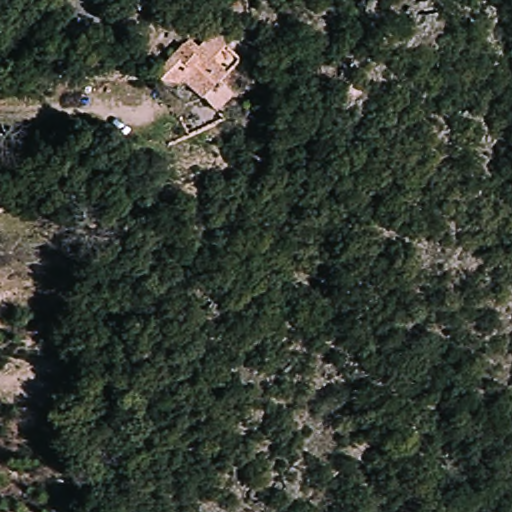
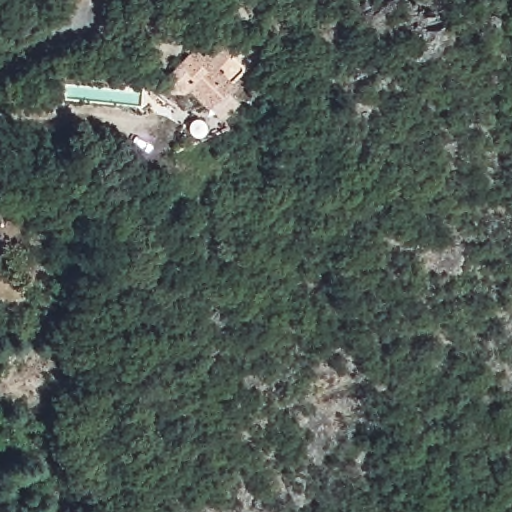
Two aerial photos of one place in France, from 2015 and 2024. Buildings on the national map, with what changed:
unchanged [(154,10),(140,17),(132,0),(150,0),(154,10)]
unchanged [(187,87),(168,84),(168,74),(196,50),(202,59),(218,45),(245,71),(235,80),(243,88),(230,100),(236,106),(224,118),(210,104),(206,107),(187,87)]

